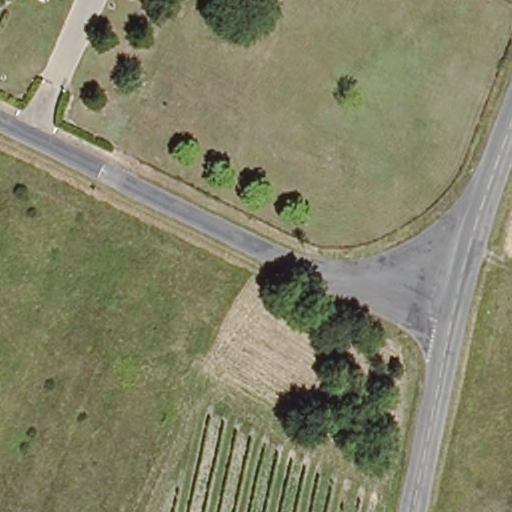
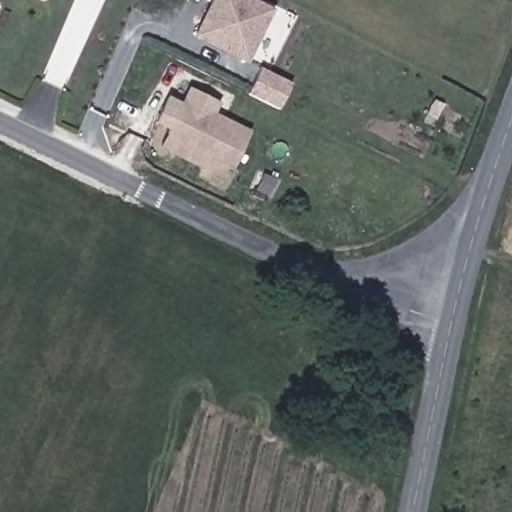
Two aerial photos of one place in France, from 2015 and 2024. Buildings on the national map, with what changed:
demolished [(33,0),(43,0),(41,4),(33,0)]
new [(259,0),(277,8),(253,59),(197,38),(216,0),(259,0)]
new [(173,129),(159,122),(170,97),(184,105),(192,89),(224,100),(213,118),(228,121),(230,116),(257,127),(240,162),(211,152),(212,153),(207,166),(164,146),(170,133),(173,129)]

